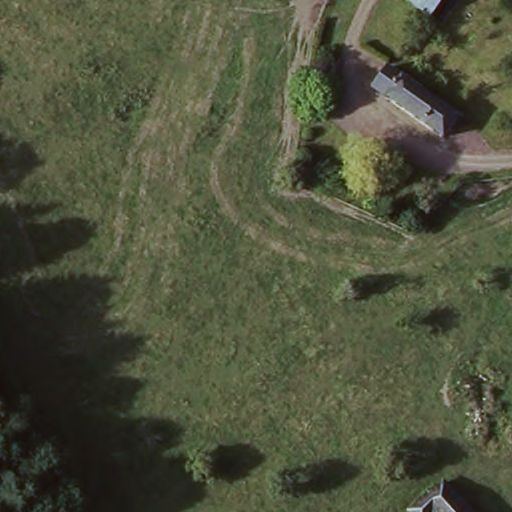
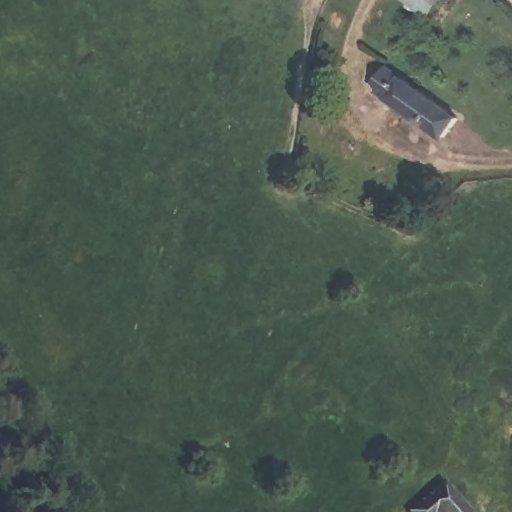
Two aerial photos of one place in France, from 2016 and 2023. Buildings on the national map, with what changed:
unchanged [(409,0),(441,0),(428,17),(409,0)]
unchanged [(372,95),(390,71),(409,85),(462,125),(447,148),(372,95)]
unchanged [(401,508),(437,475),(470,512),(405,512),(401,508)]

